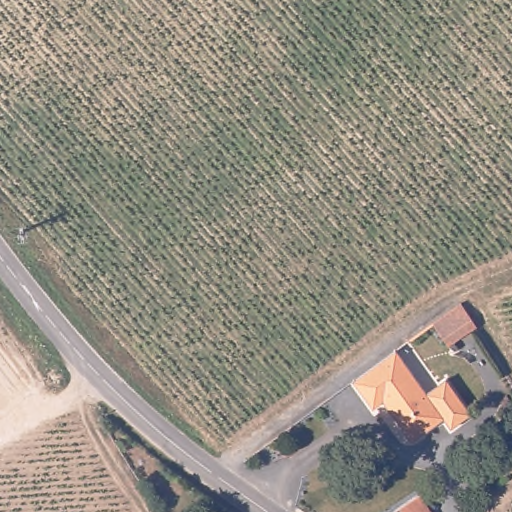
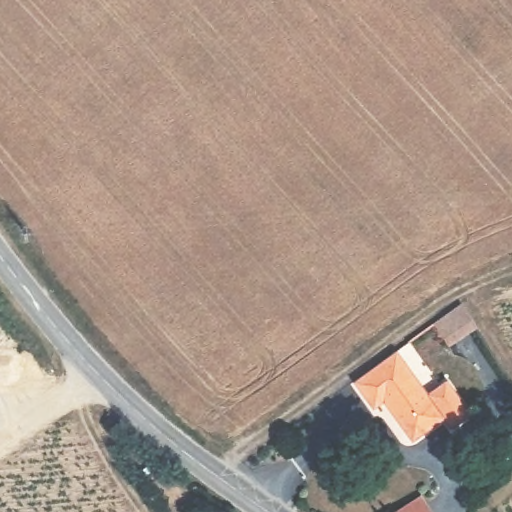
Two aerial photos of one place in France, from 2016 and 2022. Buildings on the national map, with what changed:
unchanged [(478,322),(452,343),(436,319),(462,300),(478,322)]
unchanged [(450,425),(442,415),(414,437),(385,400),(375,407),(354,378),(394,348),(426,390),(444,376),(469,410),(450,425)]
unchanged [(400,512),(392,512),(397,510),(400,512)]

